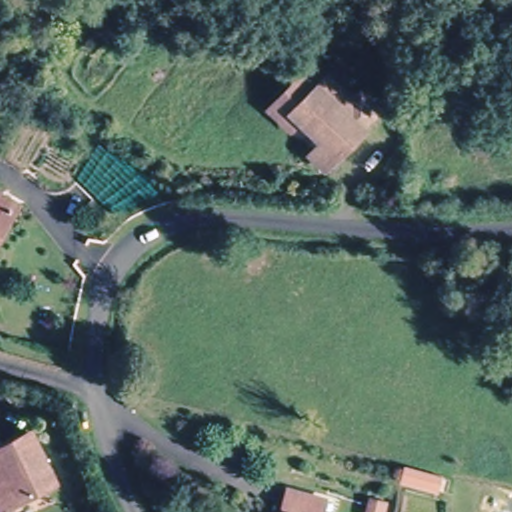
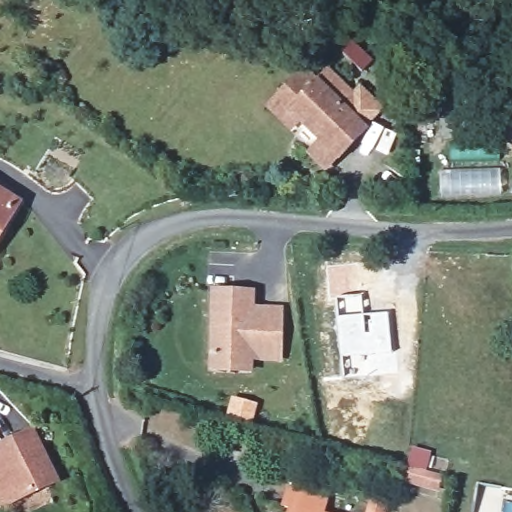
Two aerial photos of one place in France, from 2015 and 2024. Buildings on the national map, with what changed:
unchanged [(307,87),(315,80),(343,105),(352,98),(366,116),(348,134),(351,138),(318,178),(299,163),(312,146),(292,127),(285,137),(262,115),(282,94),(295,79),(307,87)]
unchanged [(0,194),(21,210),(0,239),(0,194)]
new [(210,288),(255,289),(254,306),(283,307),(282,363),(253,362),(253,374),(208,371),(210,288)]
new [(349,315),(349,311),(346,311),(345,295),(360,294),(363,314),(387,312),(392,353),(340,357),(335,317),(349,315)]
unchanged [(0,507),(0,445),(36,429),(60,481),(30,494),(26,487),(9,495),(11,503),(1,508),(0,507)]
unchanged [(437,488),(404,479),(408,466),(440,475),(437,488)]
unchanged [(278,508),(281,495),(313,504),(311,512),(283,512),(283,510),(278,508)]
unchanged [(375,512),(378,502),(391,505),(390,512),(375,512)]

